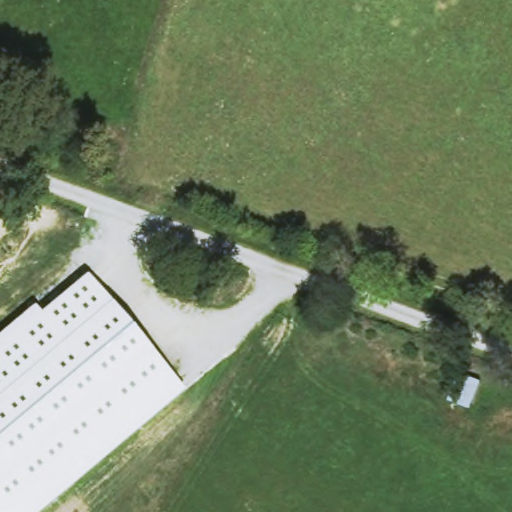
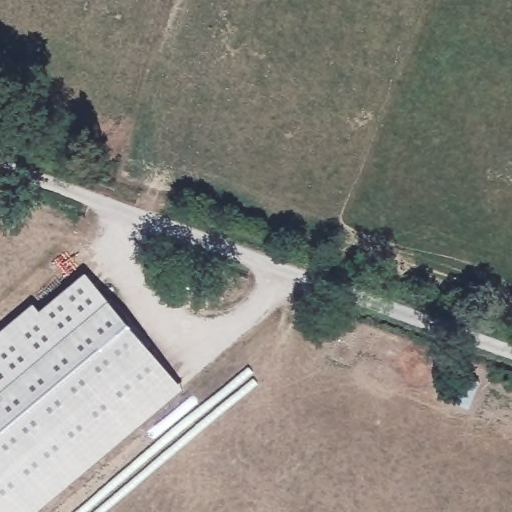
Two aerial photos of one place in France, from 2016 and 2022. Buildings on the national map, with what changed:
unchanged [(185,390),(39,512),(0,512),(0,333),(35,304),(42,312),(86,274),(185,390)]

